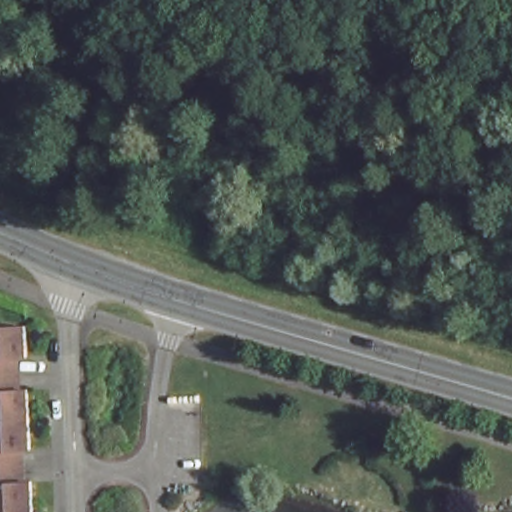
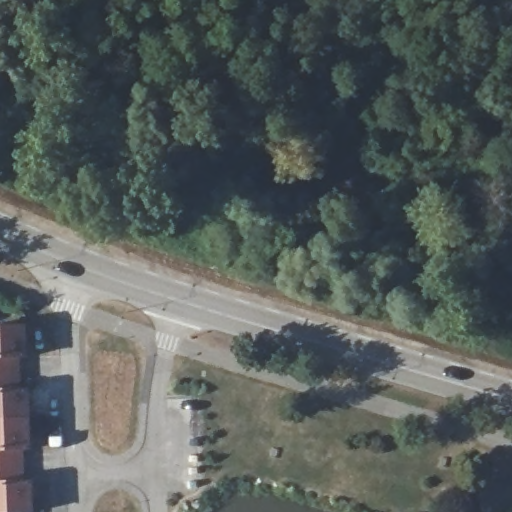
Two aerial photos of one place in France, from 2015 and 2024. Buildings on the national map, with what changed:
unchanged [(10,326),(27,326),(25,355),(20,355),(19,387),(26,387),(27,424),(28,435),(29,446),(23,446),(24,477),(31,478),(32,507),(32,509),(5,510),(5,512),(0,512),(0,327),(10,326)]

